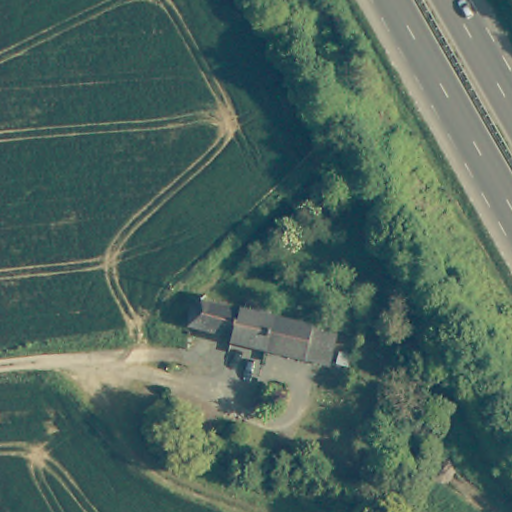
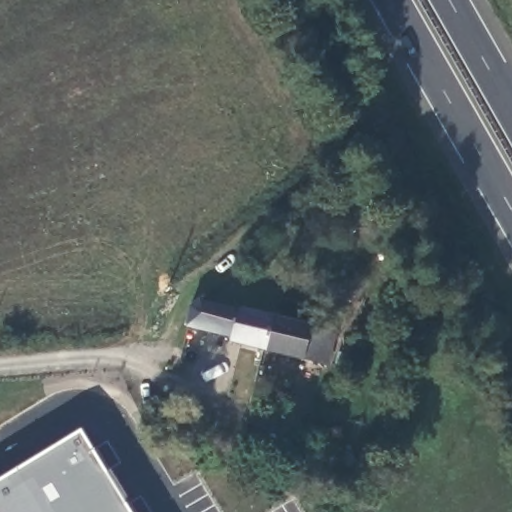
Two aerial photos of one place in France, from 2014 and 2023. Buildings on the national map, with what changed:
unchanged [(269,312),(329,330),(328,335),(321,361),(226,337),(225,335),(226,332),(183,321),(189,294),(195,295),(269,312)]
unchanged [(196,425),(171,417),(176,402),(200,411),(196,425)]
new [(80,432),(105,473),(110,470),(130,502),(125,505),(129,512),(0,512),(0,481),(80,432)]

